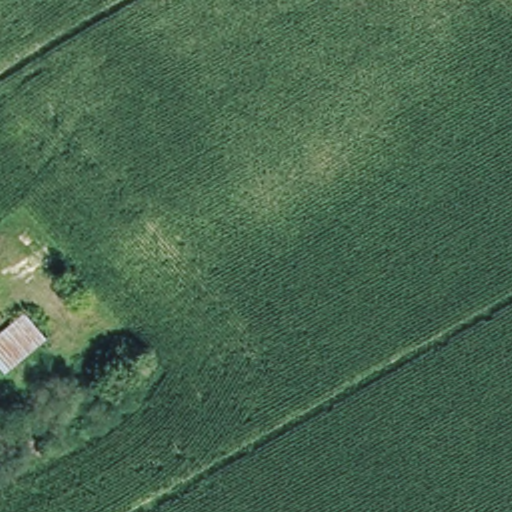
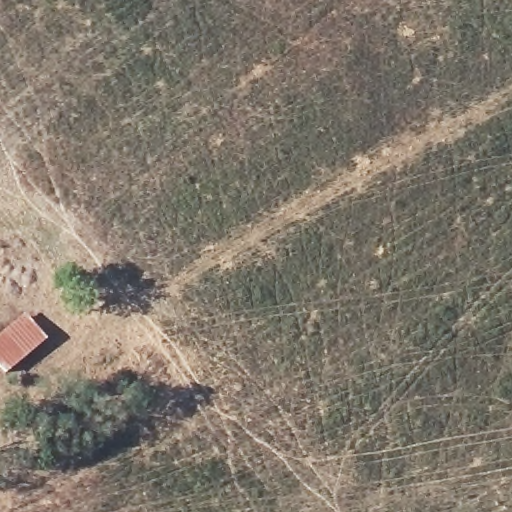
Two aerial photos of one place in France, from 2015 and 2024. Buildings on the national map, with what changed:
unchanged [(22,311),(44,337),(5,372),(0,367),(0,331),(22,311)]

